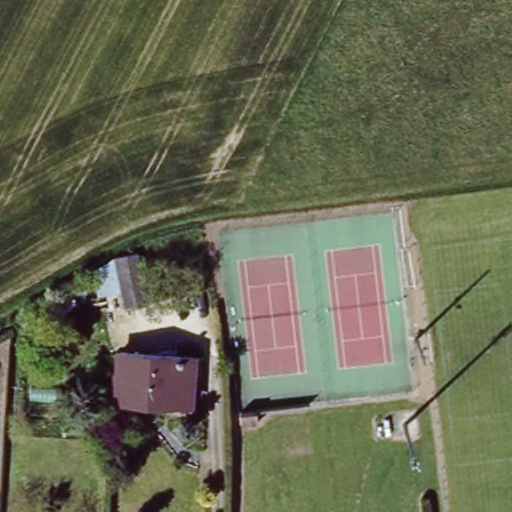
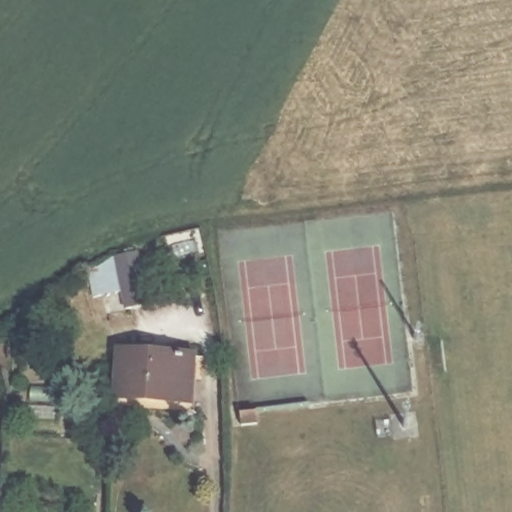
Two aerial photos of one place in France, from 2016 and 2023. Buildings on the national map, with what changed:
unchanged [(189,396),(121,392),(124,348),(191,353),(189,396)]

